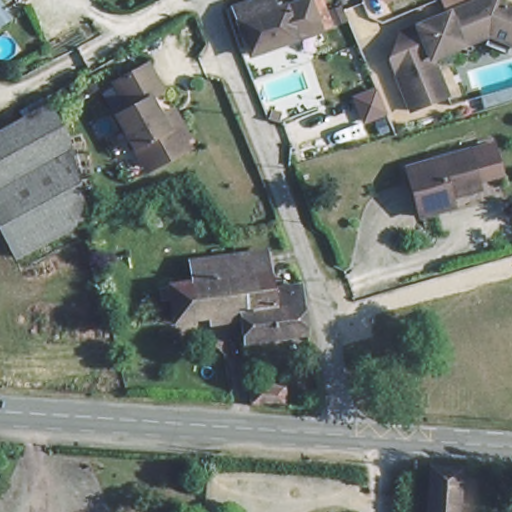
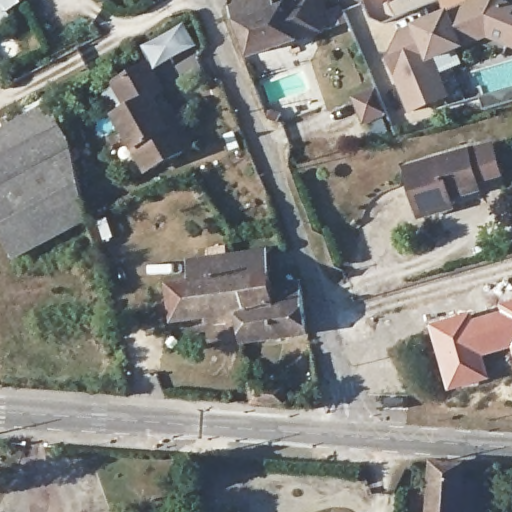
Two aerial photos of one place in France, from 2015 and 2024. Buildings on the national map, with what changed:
unchanged [(14,15),(0,23),(0,0),(20,0),(9,7),(14,15)]
unchanged [(236,14),(263,0),(281,0),(285,8),(302,0),(320,0),(329,27),(256,56),(236,14)]
unchanged [(445,94),(410,109),(389,58),(400,31),(473,0),(511,0),(512,1),(512,43),(487,32),(455,46),(460,59),(435,69),(445,94)]
unchanged [(136,136),(119,108),(135,98),(120,75),(153,55),(169,83),(156,90),(172,116),(186,109),(201,135),(188,143),(161,157),(152,162),(136,136)]
unchanged [(0,184),(0,125),(68,86),(79,138),(99,230),(20,247),(5,182),(0,184)]
new [(380,86),(390,109),(369,118),(360,94),(380,86)]
unchanged [(491,144),(500,173),(469,183),(459,154),(491,144)]
unchanged [(469,185),(441,193),(445,209),(410,220),(395,173),(459,154),(469,183),(469,185)]
unchanged [(239,320),(174,319),(172,285),(196,285),(196,259),(211,258),(211,247),(230,248),(230,256),(235,256),(239,320)]
unchanged [(285,333),(240,336),(239,320),(235,256),(268,255),(270,283),(279,283),(285,333)]
unchanged [(279,283),(310,282),(317,331),(285,333),(279,283)]
new [(474,316),(500,308),(497,303),(512,298),(512,352),(511,349),(486,357),(492,380),(447,393),(427,321),(472,309),(474,316)]
unchanged [(249,392),(249,369),(283,371),(285,394),(249,392)]
unchanged [(440,459),(470,462),(465,512),(435,512),(440,459)]

